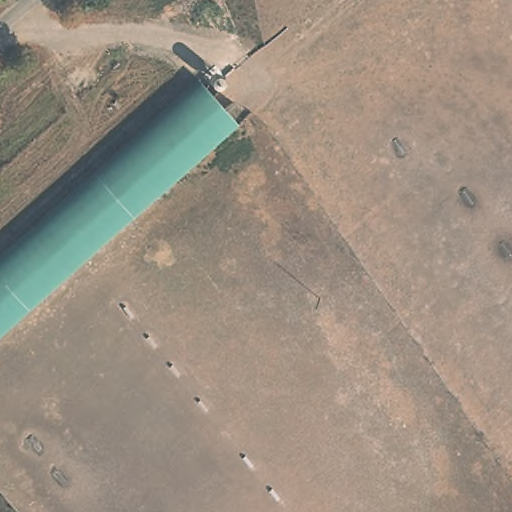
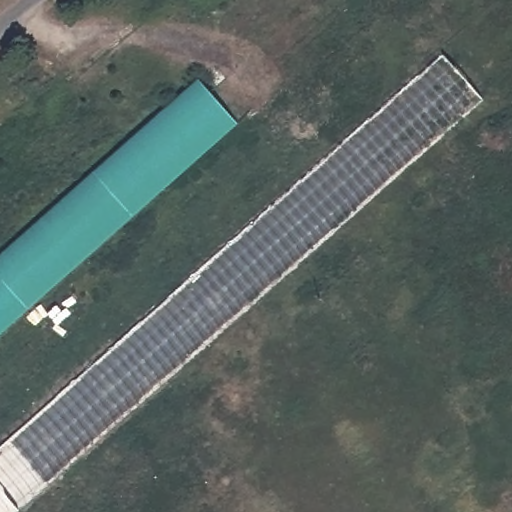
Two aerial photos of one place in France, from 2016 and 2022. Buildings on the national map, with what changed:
new [(483,98),(16,512),(0,512),(0,443),(441,53),(483,98)]
unchanged [(0,256),(198,79),(237,123),(0,336),(0,256)]

